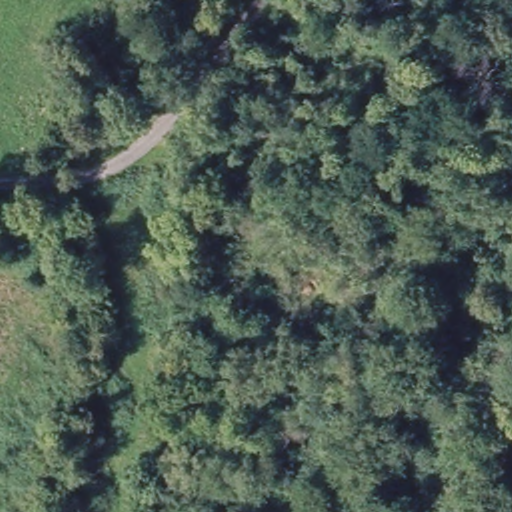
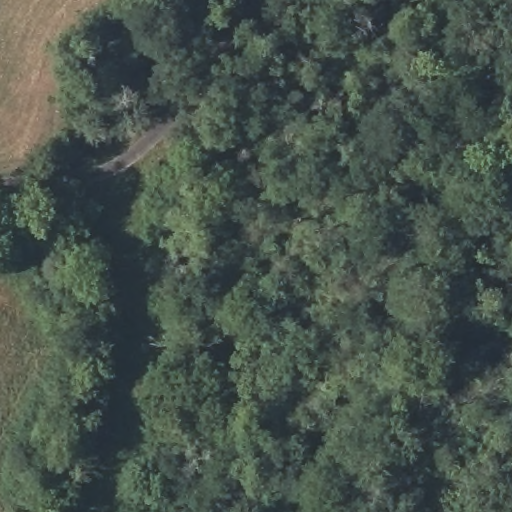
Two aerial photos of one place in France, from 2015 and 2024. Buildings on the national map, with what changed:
unchanged [(183,166),(185,206),(150,206),(152,166),(183,166)]

